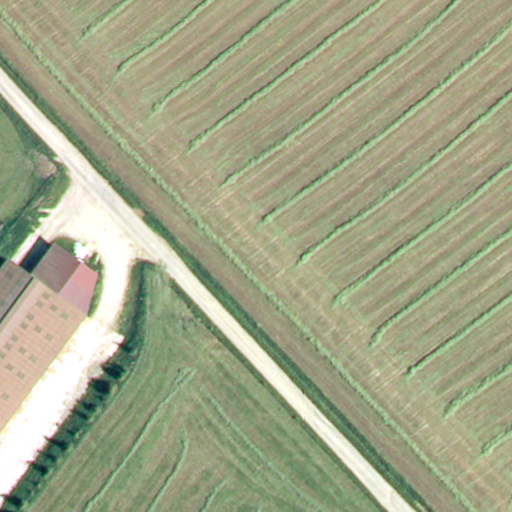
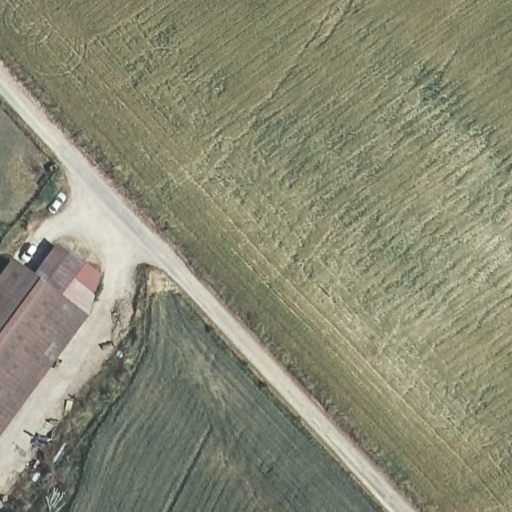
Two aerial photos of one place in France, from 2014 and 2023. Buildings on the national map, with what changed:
unchanged [(63,248),(99,275),(88,315),(40,280),(63,248)]
unchanged [(13,261),(82,312),(88,316),(0,435),(0,279),(13,261)]

